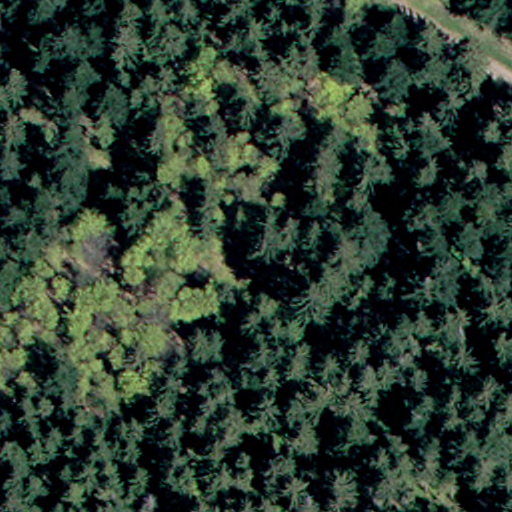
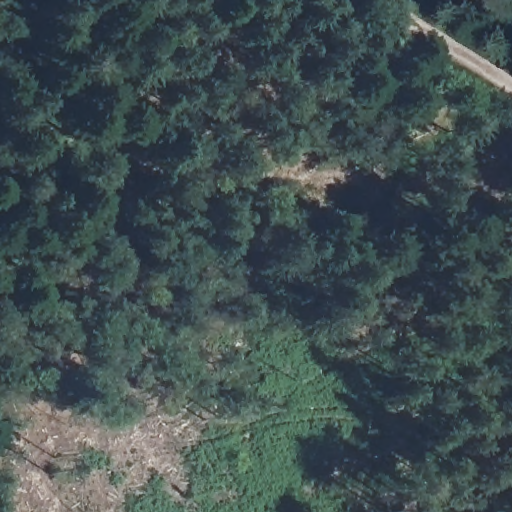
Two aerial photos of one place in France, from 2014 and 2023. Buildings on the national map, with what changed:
[]

